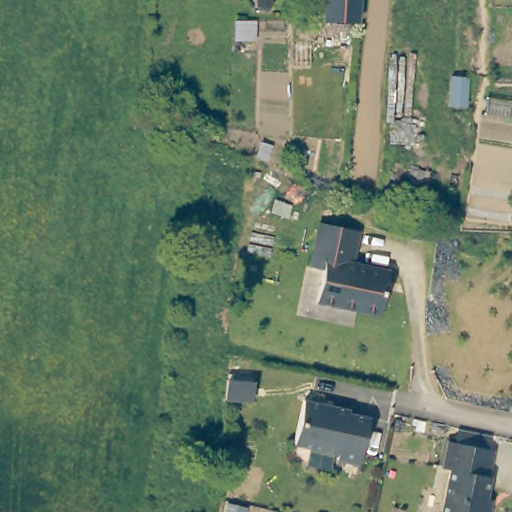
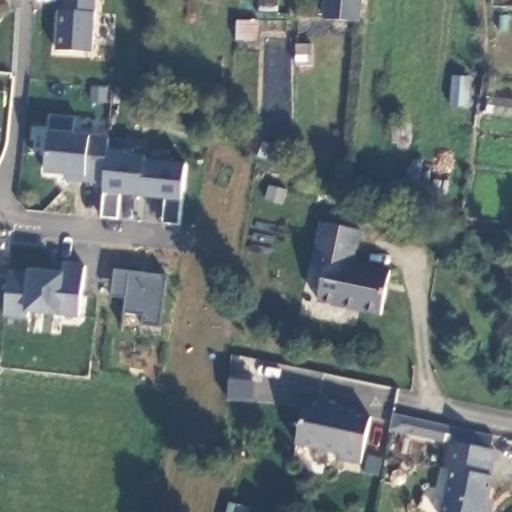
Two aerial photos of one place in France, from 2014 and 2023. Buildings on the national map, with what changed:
new [(64,11),(64,0),(94,0),(92,52),(55,51),(58,11),(64,11)]
unchanged [(358,22),(322,19),(323,0),(360,0),(359,22),(358,22)]
unchanged [(475,74),(472,114),(454,113),(458,73),(475,74)]
new [(45,174),(51,132),(52,117),(73,119),(72,134),(90,136),(110,138),(107,149),(185,162),(181,199),(178,225),(163,224),(165,199),(120,194),(117,219),(103,217),(104,193),(105,184),(67,181),(68,176),(45,174)]
unchanged [(325,258),(331,234),(369,242),(364,264),(362,275),(398,284),(388,327),(325,312),(332,280),(320,277),(325,258)]
new [(26,312),(26,318),(5,316),(10,272),(30,273),(30,270),(64,273),(65,262),(86,265),(84,280),(80,317),(60,316),(26,312)]
new [(116,270),(167,276),(160,327),(144,325),(145,315),(125,312),(127,297),(112,296),(116,270)]
unchanged [(234,389),(259,392),(257,412),(232,409),(234,389)]
unchanged [(353,411),(353,415),(373,419),(362,467),(341,462),(342,456),(297,446),(307,402),(353,411)]
unchanged [(445,467),(450,440),(495,449),(489,476),(491,477),(485,504),(490,511),(489,512),(441,512),(451,468),(445,467)]

